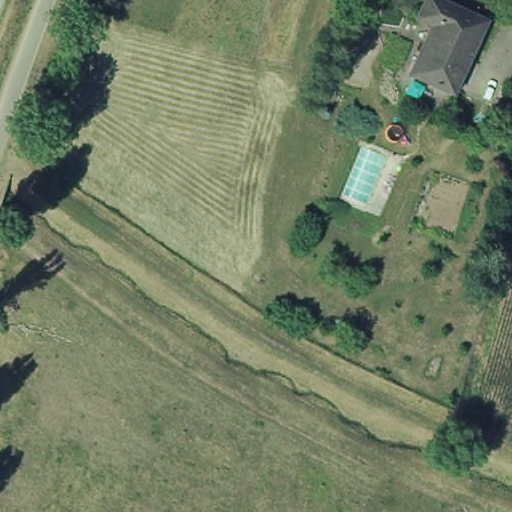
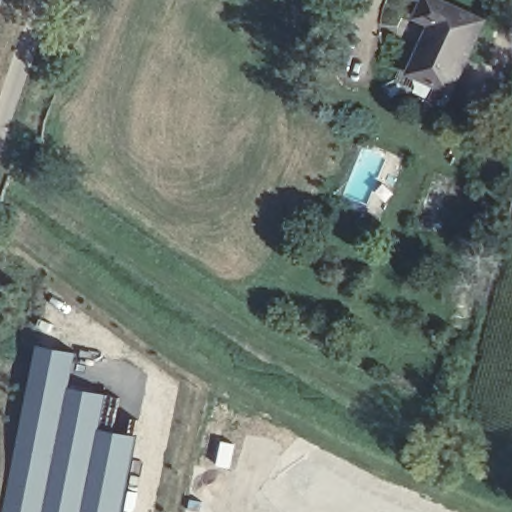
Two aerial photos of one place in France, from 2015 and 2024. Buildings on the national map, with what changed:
unchanged [(424,31),(409,20),(417,0),(423,0),(477,27),(445,97),(404,78),(424,31)]
new [(66,384),(107,393),(103,427),(136,432),(120,512),(1,512),(34,344),(73,350),(66,384)]

